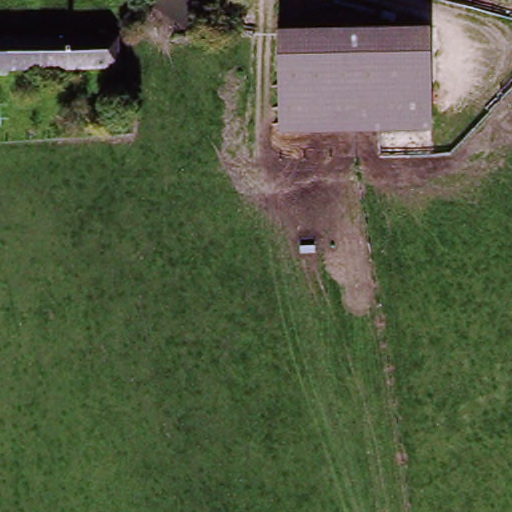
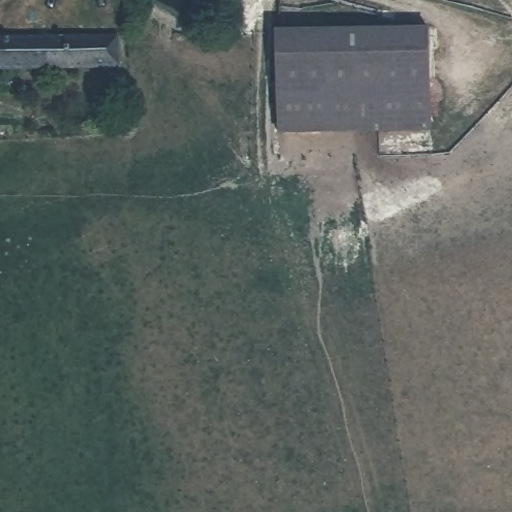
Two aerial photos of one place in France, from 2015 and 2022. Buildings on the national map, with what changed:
unchanged [(429,30),(430,134),(275,139),(276,35),(429,30)]
unchanged [(104,73),(0,75),(0,44),(113,43),(113,73),(104,73)]

